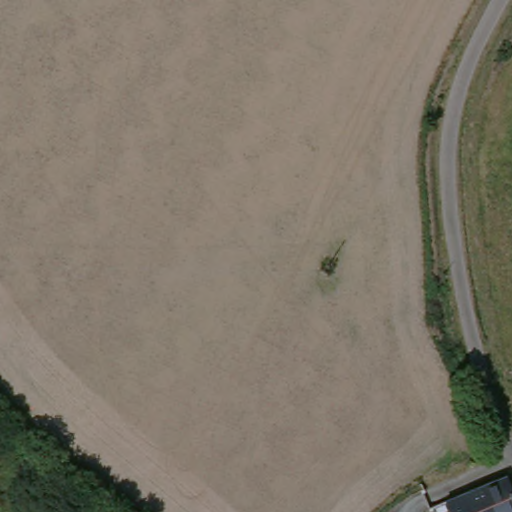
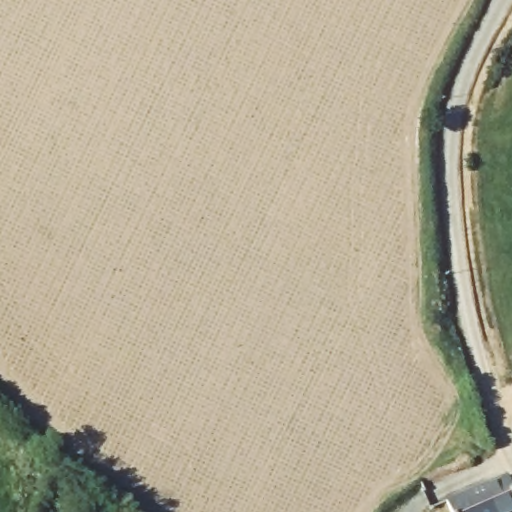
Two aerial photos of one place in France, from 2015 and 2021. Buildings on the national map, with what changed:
unchanged [(512,493),(512,512),(448,512),(445,504),(506,479),(512,493)]

